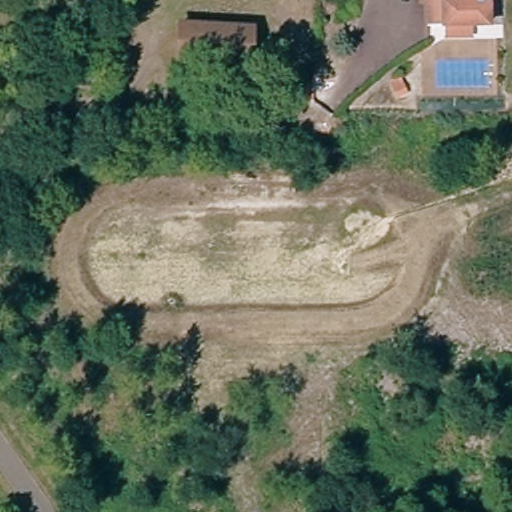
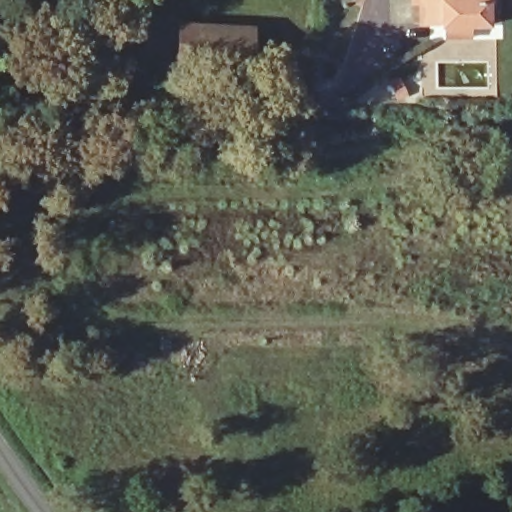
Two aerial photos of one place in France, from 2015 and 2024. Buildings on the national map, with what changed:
unchanged [(431,30),(430,8),(424,7),(424,0),(493,0),(493,5),(494,30),(474,30),(474,46),(447,46),(446,30),(431,30)]
unchanged [(250,70),(235,69),(184,61),(187,28),(187,26),(253,35),(250,70)]

